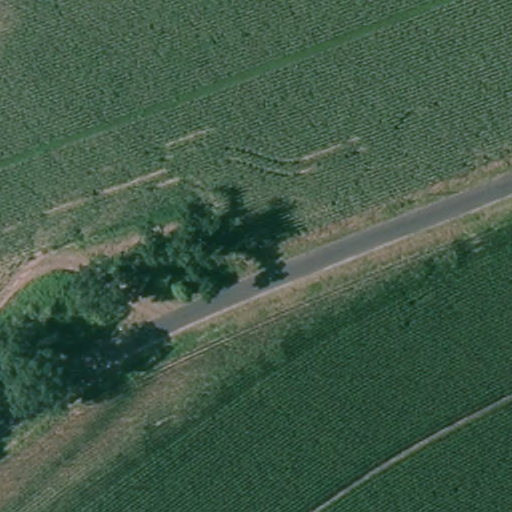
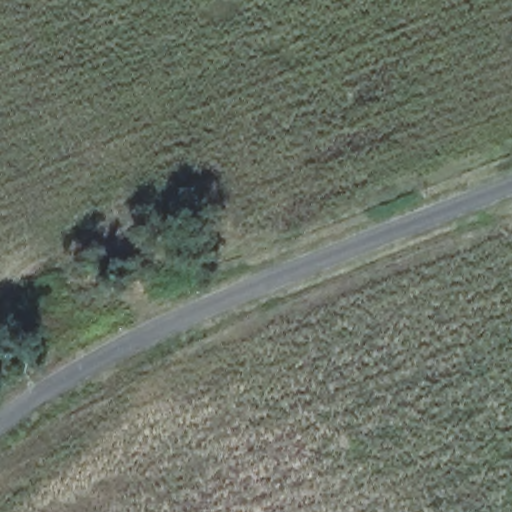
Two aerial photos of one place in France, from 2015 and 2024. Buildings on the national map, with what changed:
[]

